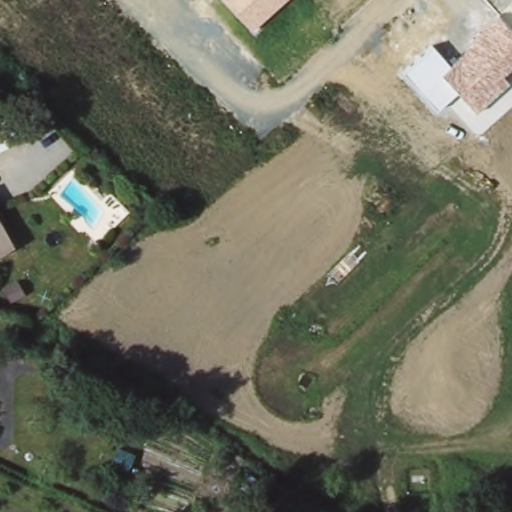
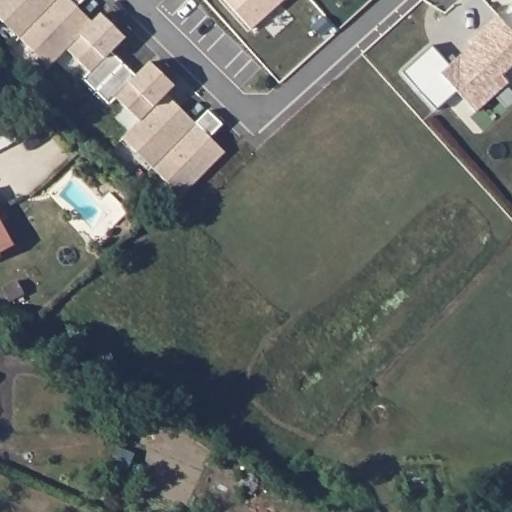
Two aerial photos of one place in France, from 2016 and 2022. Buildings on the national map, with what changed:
new [(166,94),(139,121),(115,98),(109,105),(96,91),(82,79),(89,72),(66,49),(56,60),(48,66),(32,51),(19,37),(2,21),(0,19),(0,0),(82,0),(76,6),(92,21),(100,14),(124,37),(110,51),(122,64),(135,76),(149,61),(174,86),(166,94)]
unchanged [(226,0),(283,0),(251,29),(226,0)]
unchanged [(512,68),(503,75),(510,81),(475,111),(457,91),(437,109),(406,72),(431,45),(448,65),(474,45),(470,40),(498,13),(512,29),(512,68)]
new [(152,168),(136,152),(122,139),(139,121),(166,94),(180,108),(195,123),(207,111),(221,124),(209,137),(225,153),(220,158),(189,190),(181,197),(166,182),(152,168)]
new [(21,111),(32,134),(0,150),(0,122),(21,111)]
unchanged [(13,246),(0,254),(0,224),(13,246)]

